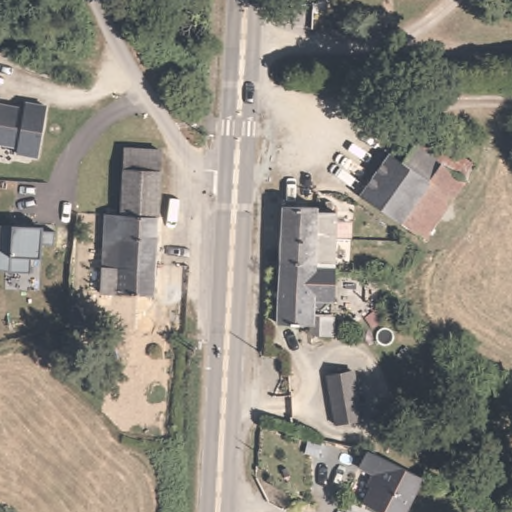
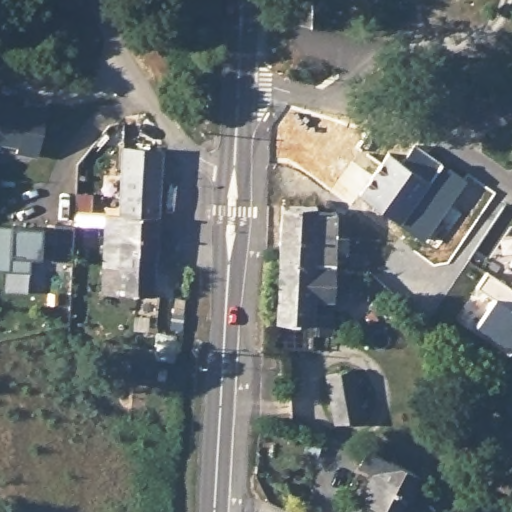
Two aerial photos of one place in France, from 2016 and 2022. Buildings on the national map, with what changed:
unchanged [(39,156),(0,146),(0,102),(46,106),(39,156)]
unchanged [(474,170),(434,230),(414,217),(407,227),(384,210),(389,200),(367,185),(397,141),(412,151),(424,134),(453,155),(474,170)]
unchanged [(123,207),(126,144),(160,145),(151,291),(99,288),(102,204),(123,207)]
unchanged [(315,203),(334,205),(334,249),(331,251),(277,249),(280,194),(315,194),(315,203)]
unchanged [(55,245),(43,246),(43,258),(32,258),(31,273),(0,271),(0,223),(56,230),(55,245)]
unchanged [(337,247),(345,248),(348,253),(348,257),(348,281),(332,282),(330,326),(305,325),(306,313),(273,310),(277,249),(331,251),(334,249),(337,247)]
new [(509,264),(512,259),(512,266),(509,264)]
new [(490,297),(474,288),(487,270),(512,285),(512,352),(502,345),(500,348),(473,332),(475,327),(471,324),(490,297)]
unchanged [(348,377),(356,420),(333,423),(325,378),(348,375),(348,377)]
unchanged [(424,478),(418,491),(408,512),(380,512),(366,505),(380,476),(360,467),(367,452),(424,478)]

